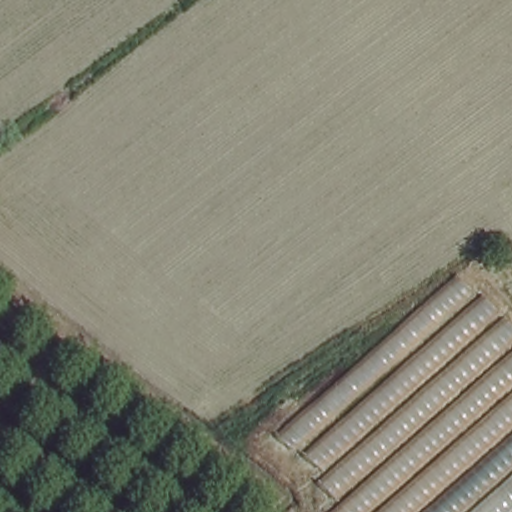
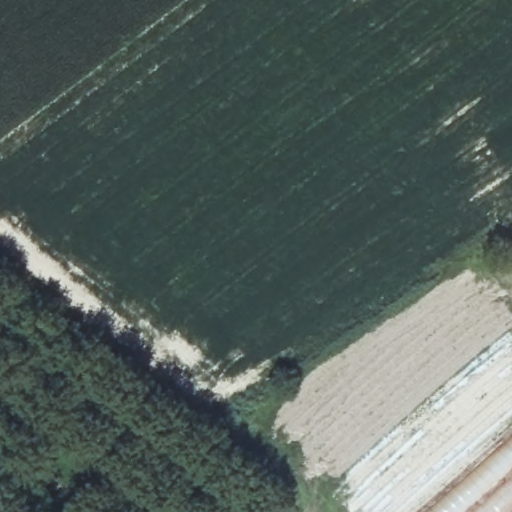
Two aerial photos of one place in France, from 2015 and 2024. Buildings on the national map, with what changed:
demolished [(310,452),(485,295),(512,334),(512,512),(327,512),(310,452)]

